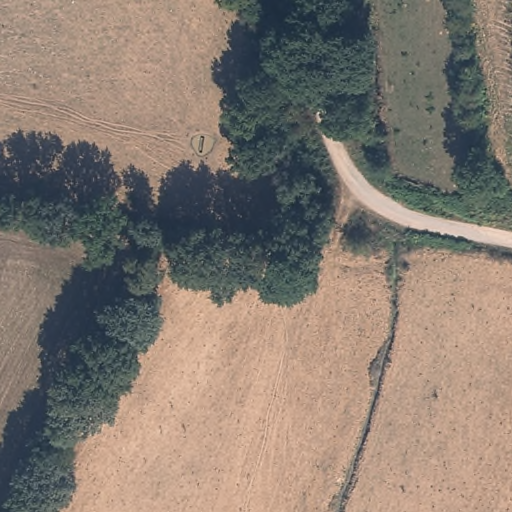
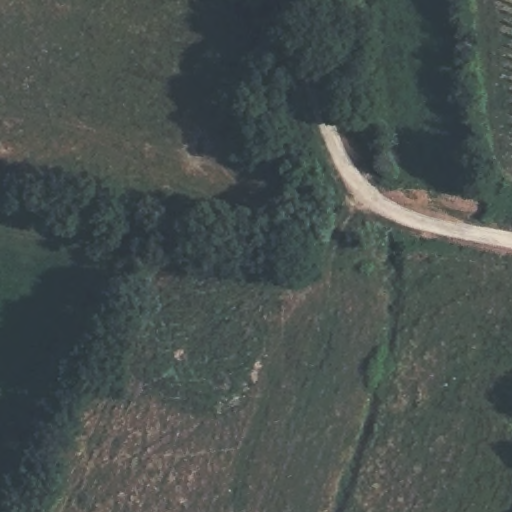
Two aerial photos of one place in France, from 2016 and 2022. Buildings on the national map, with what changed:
[]

